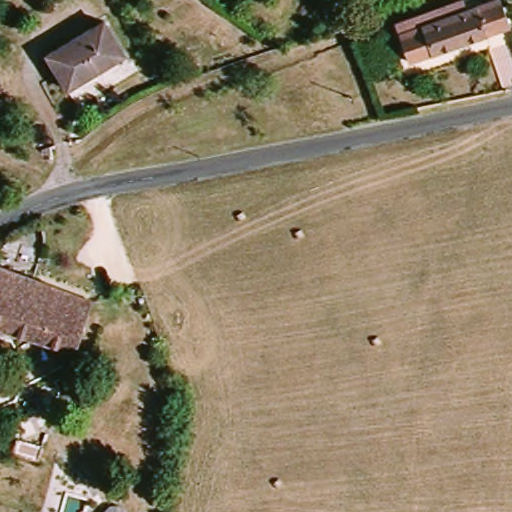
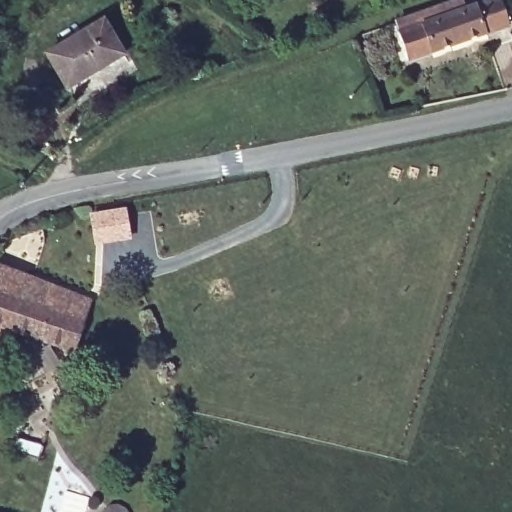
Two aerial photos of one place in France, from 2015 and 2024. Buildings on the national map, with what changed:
unchanged [(408,63),(397,32),(496,0),(500,0),(510,29),(408,63)]
unchanged [(125,56),(67,91),(45,54),(103,19),(125,56)]
new [(127,209),(130,237),(97,241),(94,212),(127,209)]
unchanged [(72,354),(0,329),(0,268),(90,298),(72,354)]
unchanged [(104,332),(121,337),(109,377),(92,372),(104,332)]
unchanged [(0,387),(50,401),(44,425),(0,413),(0,409),(0,408),(0,387)]

